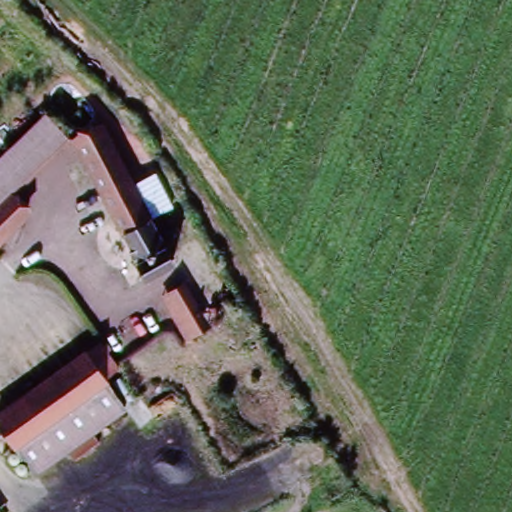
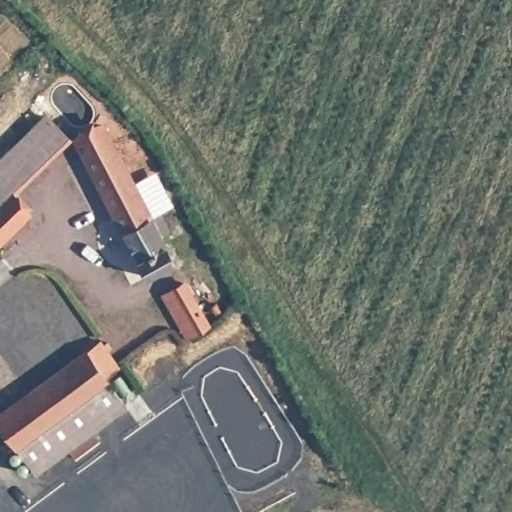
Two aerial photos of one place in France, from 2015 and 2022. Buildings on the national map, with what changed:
unchanged [(143,206),(151,202),(167,232),(158,236),(172,262),(145,276),(70,131),(97,116),(143,206)]
unchanged [(47,117),(65,137),(10,190),(0,178),(0,161),(47,117)]
unchanged [(10,190),(5,195),(0,199),(0,178),(10,190)]
unchanged [(25,216),(0,241),(0,199),(5,195),(25,216)]
unchanged [(187,320),(168,288),(182,281),(198,313),(187,320)]
unchanged [(100,342),(105,338),(110,346),(107,348),(117,365),(103,375),(15,439),(0,418),(0,409),(96,337),(100,342)]
unchanged [(120,400),(32,465),(15,439),(103,375),(120,400)]

